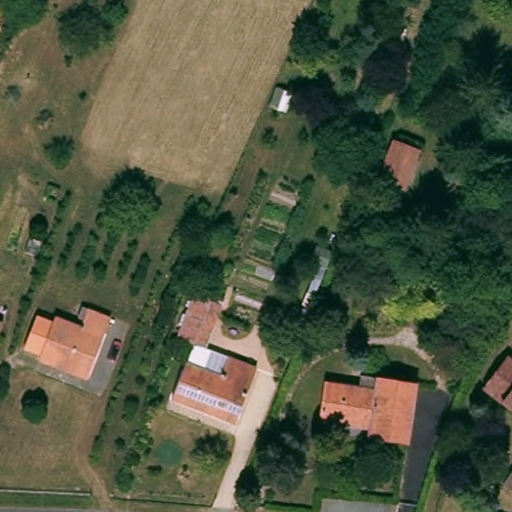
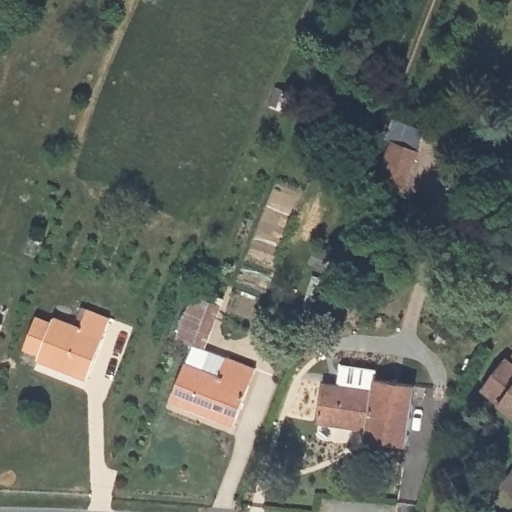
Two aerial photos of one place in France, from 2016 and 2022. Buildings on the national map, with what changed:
unchanged [(423,148),(410,184),(385,174),(398,138),(423,148)]
unchanged [(227,303),(209,348),(180,337),(196,291),(227,303)]
unchanged [(29,347),(40,315),(57,321),(59,315),(86,325),(92,307),(119,317),(97,376),(44,356),(46,353),(29,347)]
unchanged [(0,330),(0,320),(3,321),(0,330)]
unchanged [(236,422),(172,399),(187,360),(193,343),(226,355),(257,365),(236,422)]
unchanged [(486,393),(510,361),(512,362),(512,412),(486,393)]
unchanged [(372,429),(325,423),(330,383),(362,386),(363,375),(418,380),(411,442),(372,438),(372,429)]
unchanged [(506,488),(512,480),(512,493),(506,488)]

